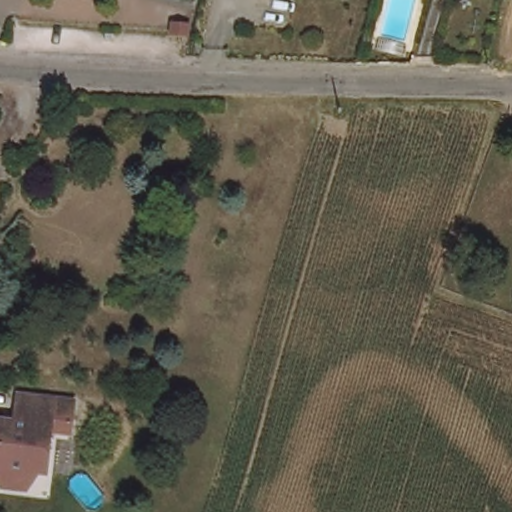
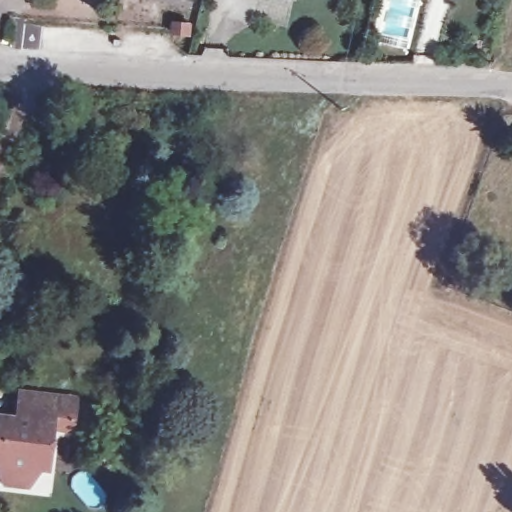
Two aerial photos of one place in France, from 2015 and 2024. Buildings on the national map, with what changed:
unchanged [(5,489),(0,474),(0,420),(20,422),(21,414),(23,397),(23,394),(74,397),(74,411),(72,431),(60,430),(52,430),(49,470),(43,470),(27,491),(5,489)]

